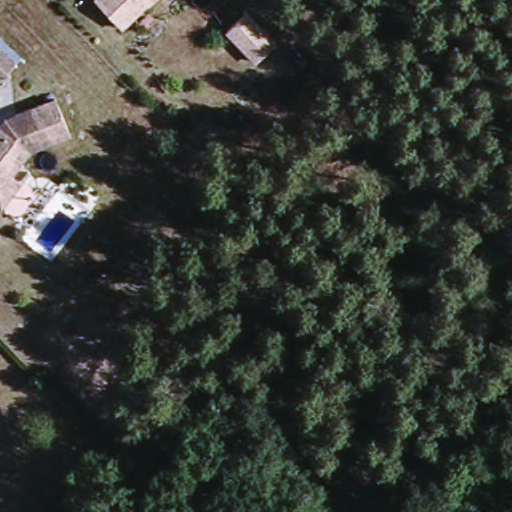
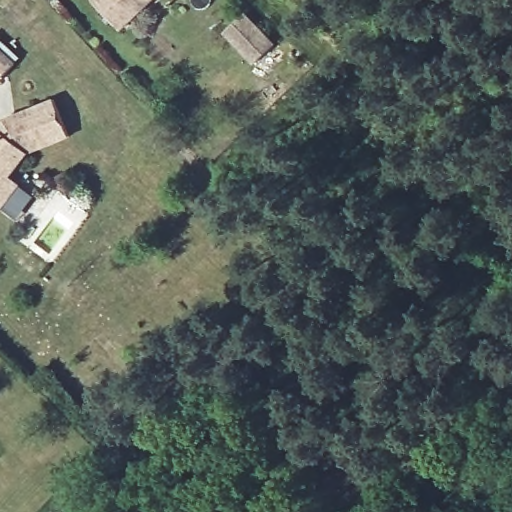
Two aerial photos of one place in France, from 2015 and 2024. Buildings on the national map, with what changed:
unchanged [(101,0),(156,0),(123,31),(110,17),(97,3),(101,0)]
unchanged [(248,11),(279,43),(255,65),(224,33),(248,11)]
unchanged [(22,65),(3,85),(0,82),(0,45),(22,65)]
unchanged [(4,215),(0,212),(0,135),(5,138),(18,121),(56,106),(71,142),(32,158),(13,183),(23,190),(4,215)]

